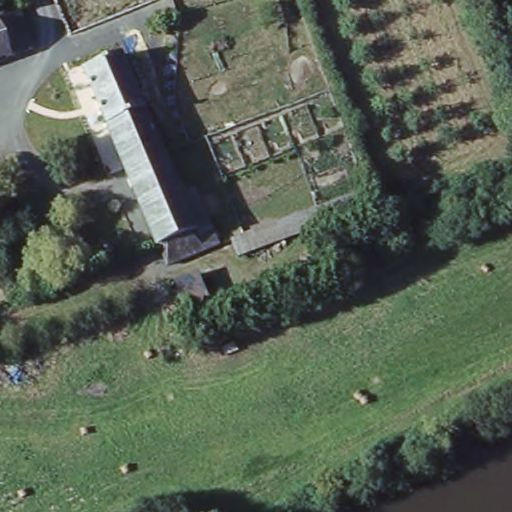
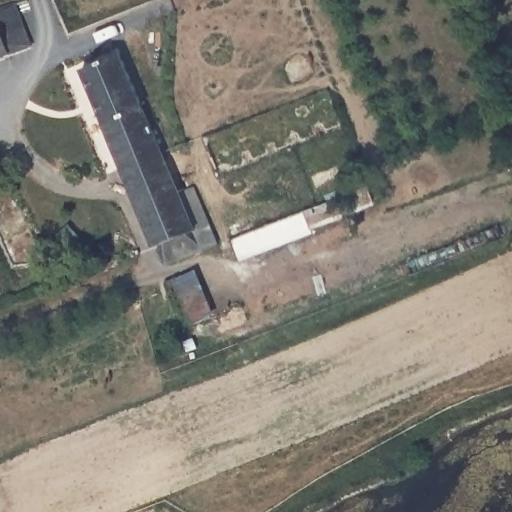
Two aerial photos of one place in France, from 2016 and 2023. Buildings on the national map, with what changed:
unchanged [(29,49),(0,60),(0,10),(14,4),(29,49)]
unchanged [(151,249),(114,160),(77,73),(115,58),(174,195),(188,190),(212,246),(199,252),(160,268),(151,249)]
unchanged [(366,187),(371,200),(234,250),(229,237),(366,187)]

